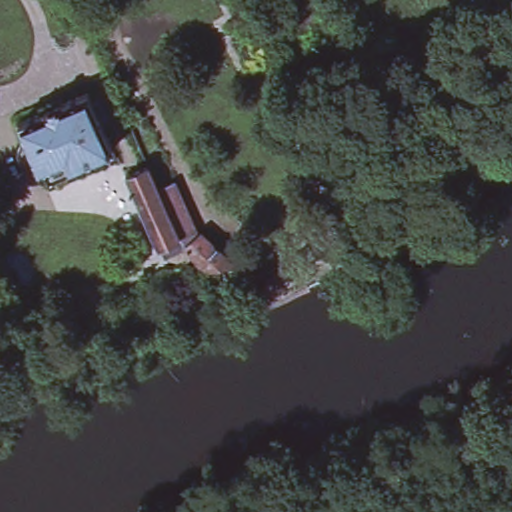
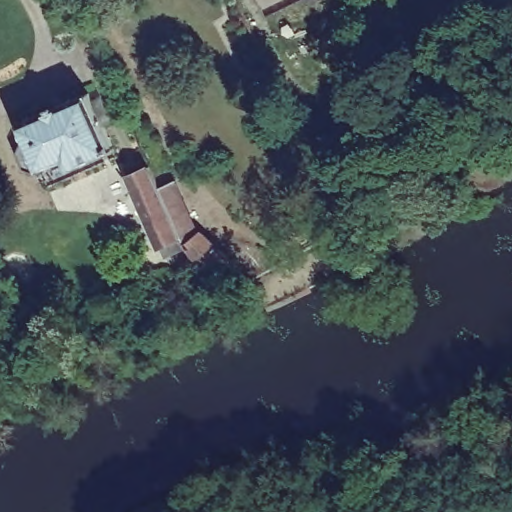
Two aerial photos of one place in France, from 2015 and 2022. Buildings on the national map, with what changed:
unchanged [(75,167),(70,157),(39,170),(28,167),(22,151),(25,142),(31,140),(23,121),(50,111),(48,108),(66,100),(67,102),(92,92),(117,149),(75,167)]
unchanged [(158,240),(126,170),(148,160),(151,166),(165,160),(185,206),(190,204),(201,226),(235,258),(213,261),(205,259),(198,255),(173,266),(160,239),(158,240)]

